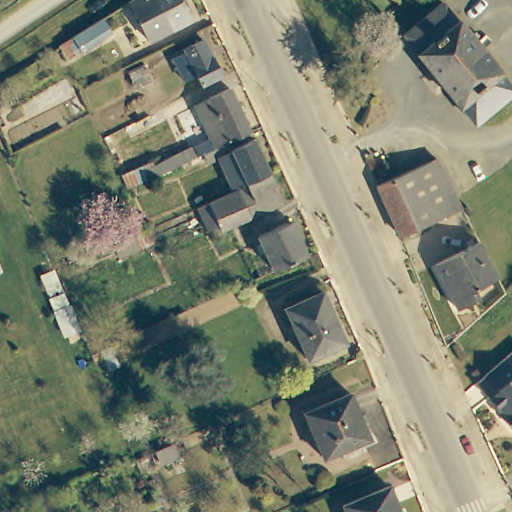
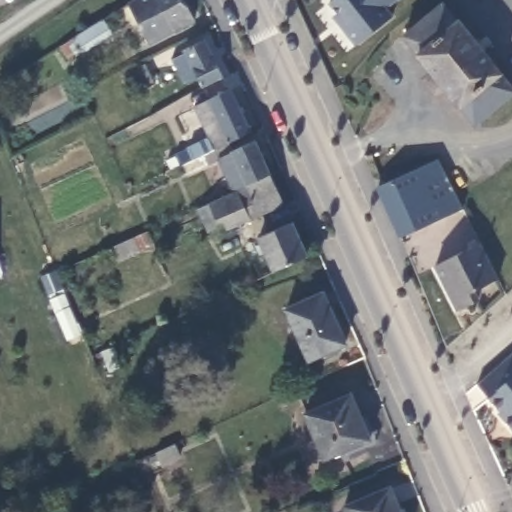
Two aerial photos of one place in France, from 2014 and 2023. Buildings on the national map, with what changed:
unchanged [(190,21),(145,43),(127,4),(133,0),(181,0),(190,21)]
new [(330,16),(333,13),(326,5),(331,0),(396,0),(388,7),(394,15),(354,46),(330,16)]
unchanged [(417,53),(401,34),(442,2),(456,20),(458,19),(478,45),(436,79),(416,53),(417,53)]
unchanged [(71,37),(98,21),(101,19),(109,34),(105,37),(80,52),(67,59),(59,46),(71,37)]
unchanged [(499,72),(498,73),(512,89),(512,91),(472,123),(458,105),(457,106),(436,79),(478,45),(499,72)]
unchanged [(197,80),(184,87),(172,62),(205,46),(222,80),(202,90),(197,80)]
unchanged [(235,197),(223,171),(220,163),(182,180),(179,174),(200,163),(195,154),(211,146),(195,114),(210,106),(210,104),(231,94),(252,137),(230,148),(233,156),(256,145),(272,180),(235,197)]
unchanged [(375,186),(420,167),(436,160),(459,209),(442,217),(398,237),(375,186)]
unchanged [(285,209),(224,237),(221,232),(212,237),(201,212),(235,197),(272,180),(285,209)]
unchanged [(257,237),(289,223),(303,255),(271,270),(257,237)]
unchanged [(117,258),(111,246),(145,230),(151,243),(117,258)]
unchanged [(458,313),(435,269),(479,246),(498,282),(473,295),(477,303),(458,313)]
unchanged [(41,276),(54,271),(61,288),(48,293),(41,276)]
unchanged [(308,363),(288,313),(324,298),(345,349),(308,363)]
unchanged [(55,311),(69,306),(78,330),(64,335),(55,311)]
unchanged [(501,424),(503,423),(474,389),(512,355),(512,436),(501,424)]
unchanged [(366,441),(321,461),(301,417),(346,396),(366,441)]
unchanged [(157,451),(175,443),(180,455),(162,462),(157,451)]
unchanged [(386,488),(396,512),(343,512),(341,509),(386,488)]

